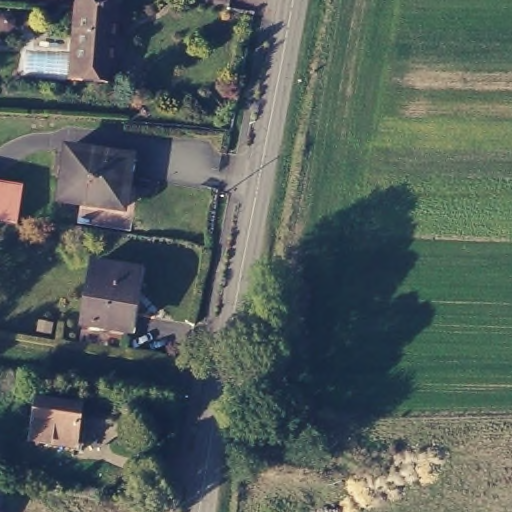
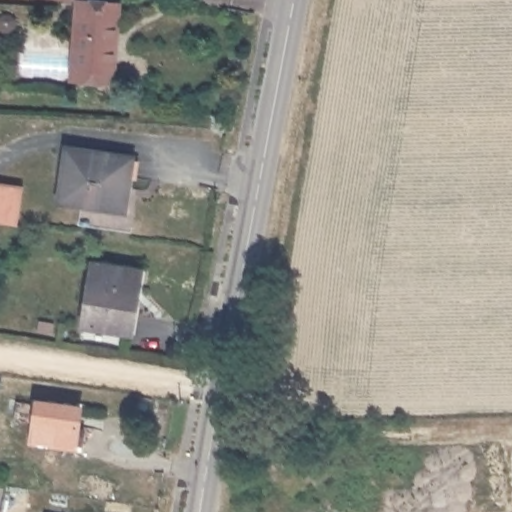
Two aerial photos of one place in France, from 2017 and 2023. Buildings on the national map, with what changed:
unchanged [(78,3),(118,6),(113,80),(73,78),(78,3)]
unchanged [(9,30),(4,35),(0,35),(0,18),(5,19),(10,24),(9,30)]
unchanged [(63,198),(70,146),(135,156),(127,208),(63,198)]
unchanged [(20,227),(0,223),(0,184),(26,188),(20,227)]
unchanged [(139,268),(128,331),(86,324),(96,262),(139,268)]
unchanged [(84,409),(78,447),(34,440),(40,403),(84,409)]

